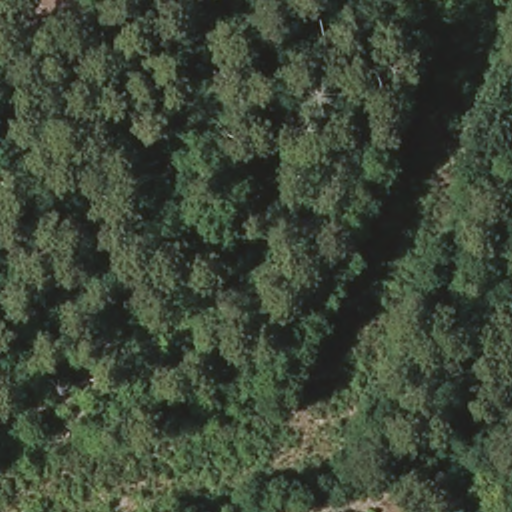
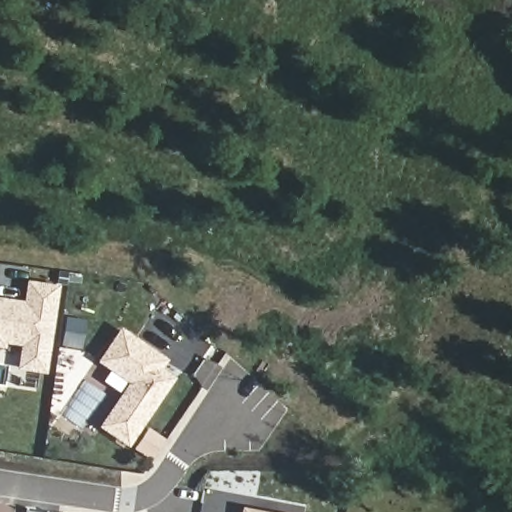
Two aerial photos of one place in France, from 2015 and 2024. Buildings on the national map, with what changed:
new [(18,372),(19,347),(5,344),(5,349),(0,348),(0,298),(22,301),(26,282),(59,285),(47,376),(18,372)]
new [(85,321),(80,348),(62,344),(66,318),(85,321)]
new [(117,329),(159,359),(153,368),(167,377),(123,442),(98,424),(128,380),(96,359),(117,329)]
new [(239,511),(247,512),(239,512),(239,511)]

